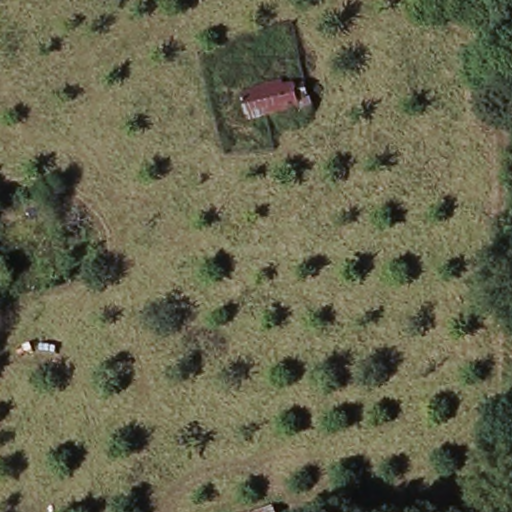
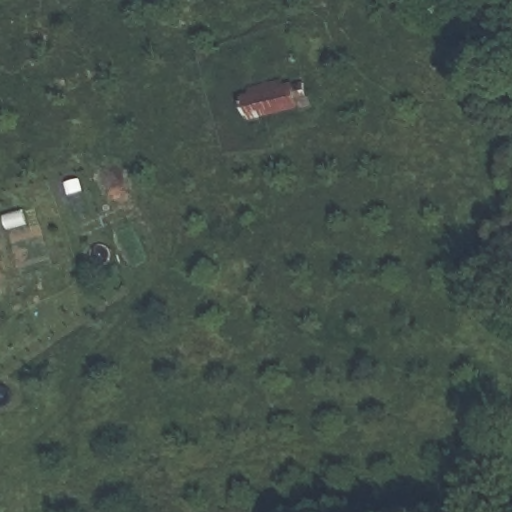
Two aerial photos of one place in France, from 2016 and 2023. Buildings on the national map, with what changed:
unchanged [(255,100),(254,89),(288,80),(292,92),(305,90),(310,107),(304,106),(305,116),(249,131),(243,104),(255,100)]

